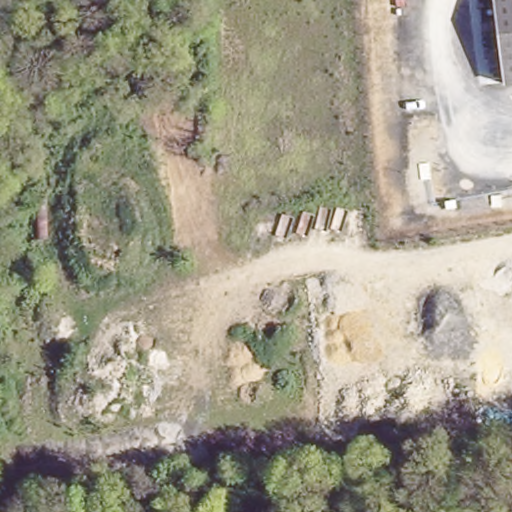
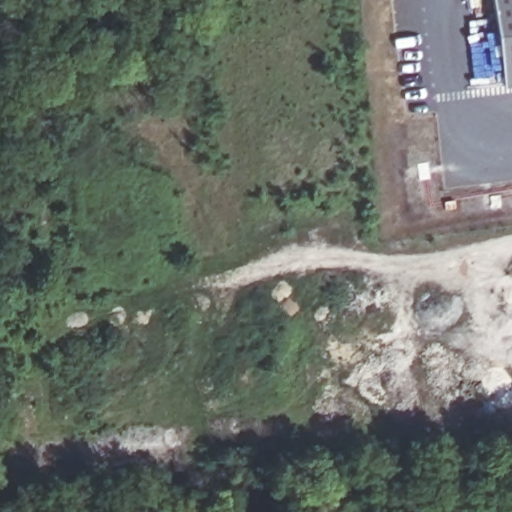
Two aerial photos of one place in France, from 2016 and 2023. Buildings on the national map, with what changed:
unchanged [(506,80),(498,0),(512,0),(512,79),(506,80)]

